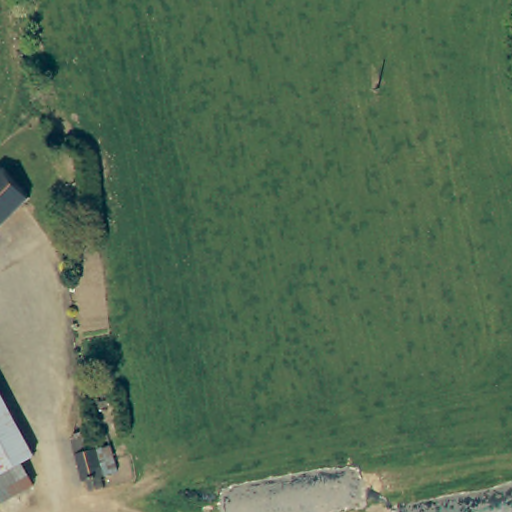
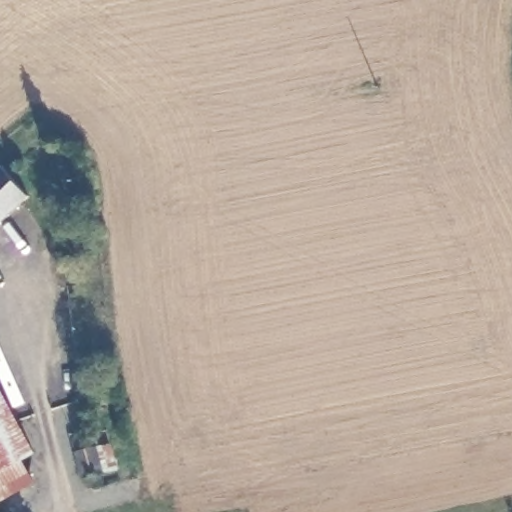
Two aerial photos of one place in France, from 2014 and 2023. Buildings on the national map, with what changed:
unchanged [(1,162),(31,190),(0,223),(0,163),(1,162)]
unchanged [(14,406),(41,455),(30,461),(42,483),(34,487),(0,506),(0,380),(14,406)]
unchanged [(119,476),(109,473),(101,464),(91,425),(108,420),(121,466),(119,476)]

